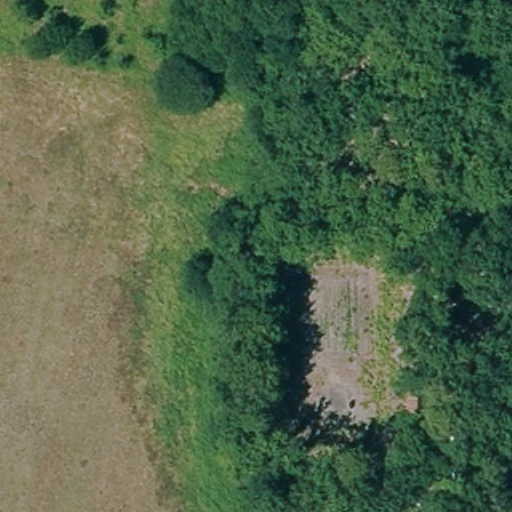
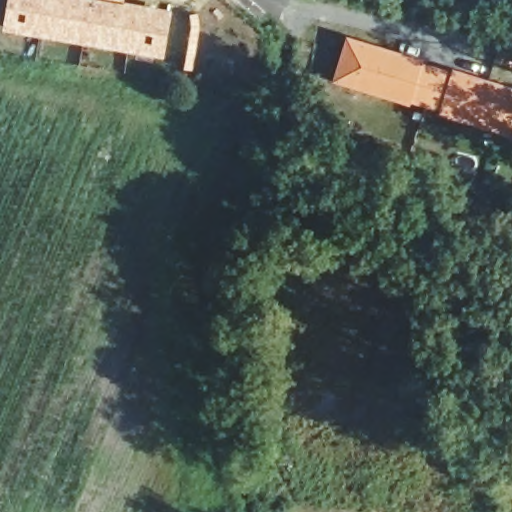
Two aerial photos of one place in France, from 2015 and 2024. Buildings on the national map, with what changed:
new [(7,0),(127,0),(173,8),(164,57),(1,29),(7,0)]
new [(346,34),(423,59),(409,105),(331,81),(346,34)]
new [(423,59),(452,67),(437,114),(409,105),(423,59)]
new [(488,77),(493,63),(512,68),(512,139),(461,124),(437,114),(452,67),(488,77)]

